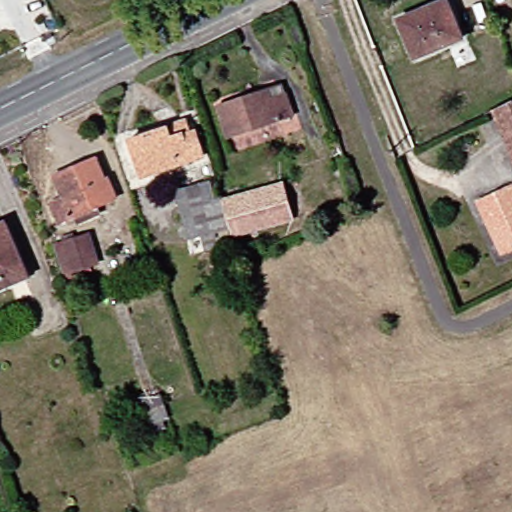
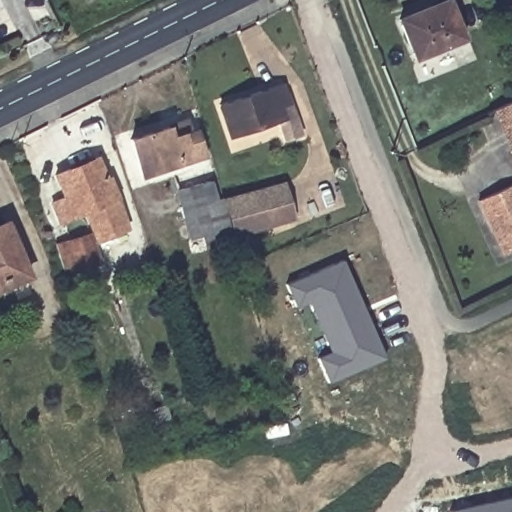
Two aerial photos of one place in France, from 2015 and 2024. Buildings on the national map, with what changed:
unchanged [(415,58),(400,18),(447,0),(449,0),(465,39),(415,58)]
unchanged [(295,116),(231,139),(220,107),(262,91),(270,88),(274,97),(286,93),(295,116)]
unchanged [(512,103),(512,138),(500,109),(512,103)]
unchanged [(205,156),(144,176),(131,141),(169,129),(189,122),(192,133),(197,131),(205,156)]
unchanged [(115,179),(123,198),(65,222),(57,202),(70,197),(61,175),(74,169),(101,159),(104,164),(110,181),(115,179)]
unchanged [(195,244),(182,196),(215,186),(222,207),(227,206),(235,233),(195,244)]
unchanged [(482,201),(512,188),(512,254),(511,254),(507,256),(498,237),(482,201)]
unchanged [(298,224),(240,241),(230,207),(289,189),(298,224)]
unchanged [(7,222),(30,276),(0,289),(0,225),(7,222)]
unchanged [(90,236),(99,263),(65,273),(56,246),(90,236)]
new [(318,356),(329,352),(308,302),(295,307),(285,283),(341,259),(385,358),(327,383),(318,356)]
unchanged [(146,411),(142,400),(162,393),(165,404),(170,417),(151,424),(146,411)]
new [(512,496),(512,512),(449,512),(449,510),(512,496)]

